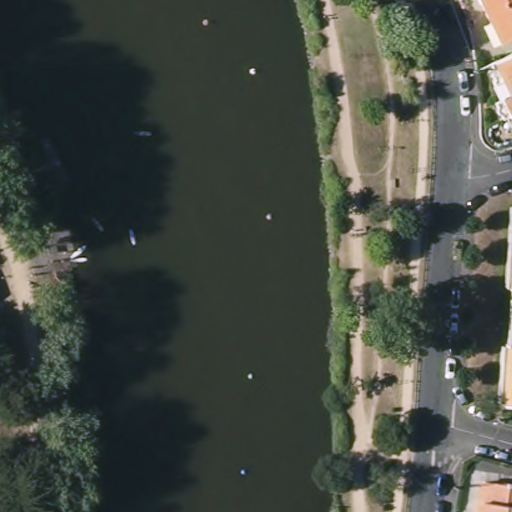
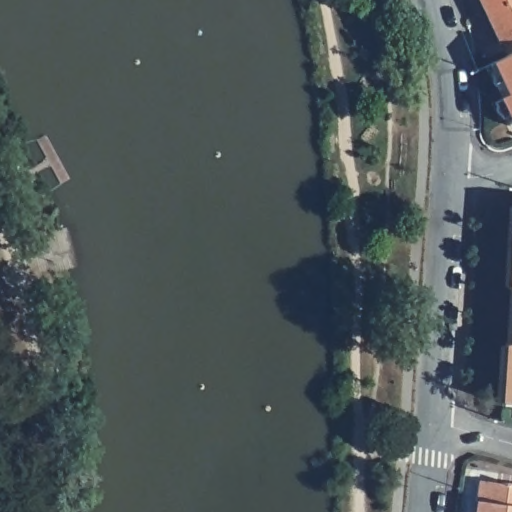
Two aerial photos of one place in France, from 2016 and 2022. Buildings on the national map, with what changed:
unchanged [(478,0),(512,0),(512,35),(504,39),(498,42),(488,20),(478,0)]
unchanged [(502,116),(497,119),(490,101),(498,97),(501,96),(490,72),(489,60),(493,59),(497,56),(512,50),(512,129),(506,126),(502,116)]
unchanged [(506,286),(512,219),(512,287),(506,286)]
unchanged [(510,343),(512,308),(512,403),(497,401),(501,342),(510,343)]
unchanged [(512,484),(512,512),(477,512),(481,480),(512,484)]

